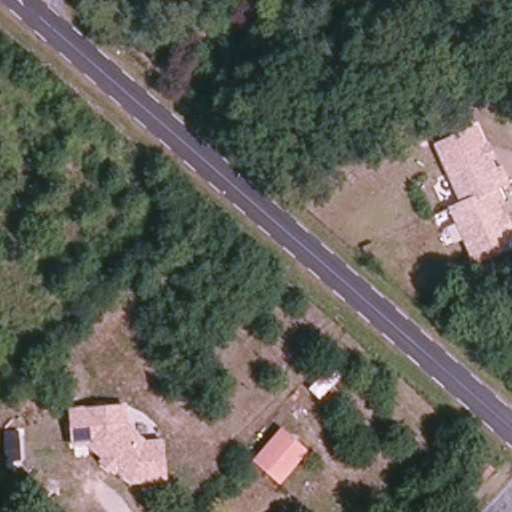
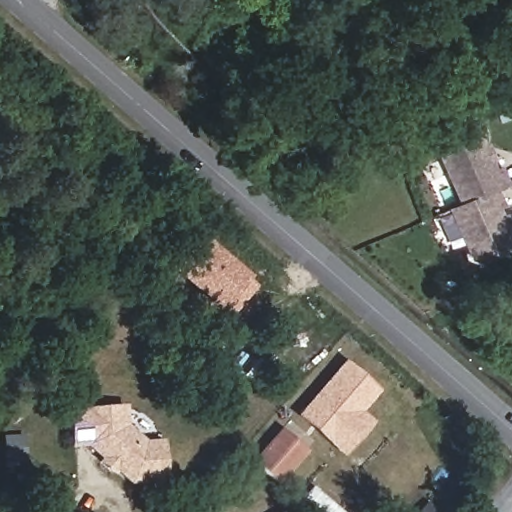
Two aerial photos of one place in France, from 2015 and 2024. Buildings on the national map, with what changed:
unchanged [(492,172),(498,169),(506,184),(495,189),(501,204),(496,207),(512,242),(512,247),(481,263),(472,260),(449,210),(460,205),(432,148),(471,129),(492,172)]
new [(230,319),(223,313),(173,271),(201,235),(251,278),(249,280),(256,287),(230,319)]
new [(363,412),(375,423),(345,458),(296,417),(344,361),(380,392),(363,412)]
unchanged [(166,483),(129,487),(97,462),(100,458),(88,446),(70,448),(67,407),(126,404),(129,425),(145,441),(165,439),(166,483)]
unchanged [(270,475),(259,466),(285,435),(310,456),(283,487),(270,475)]
unchanged [(486,461),(495,470),(481,483),(473,474),(486,461)]
new [(302,498),(313,487),(341,512),(319,512),(302,498)]

